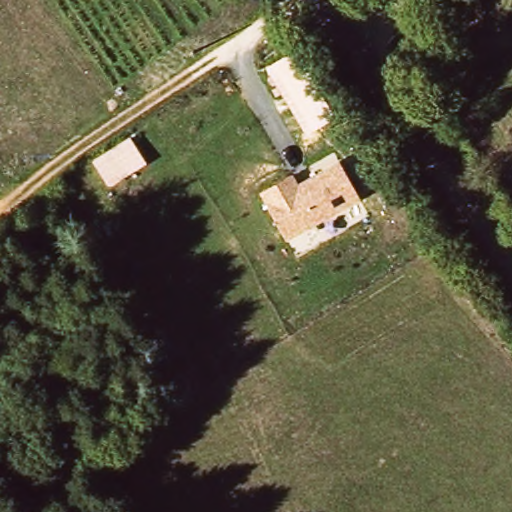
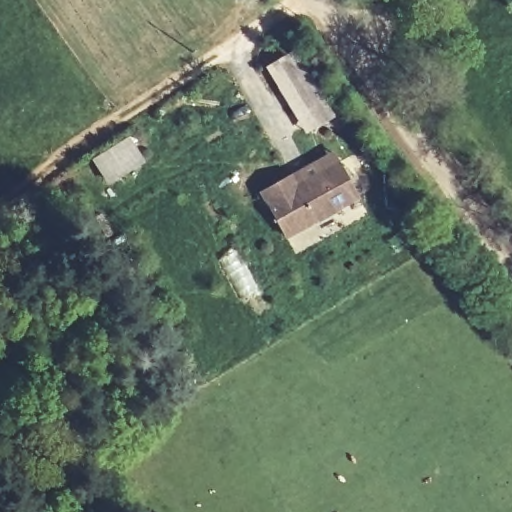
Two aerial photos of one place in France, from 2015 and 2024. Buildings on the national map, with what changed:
new [(334,116),(306,133),(265,66),(293,50),(334,116)]
unchanged [(90,161),(128,138),(145,161),(107,187),(90,161)]
unchanged [(256,194),(292,174),(333,150),(338,162),(359,200),(285,242),(256,194)]

